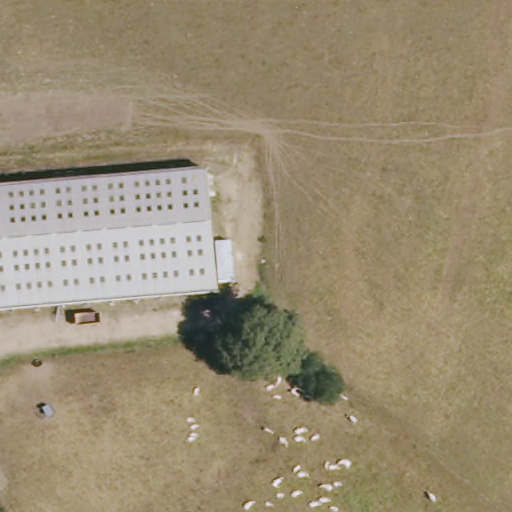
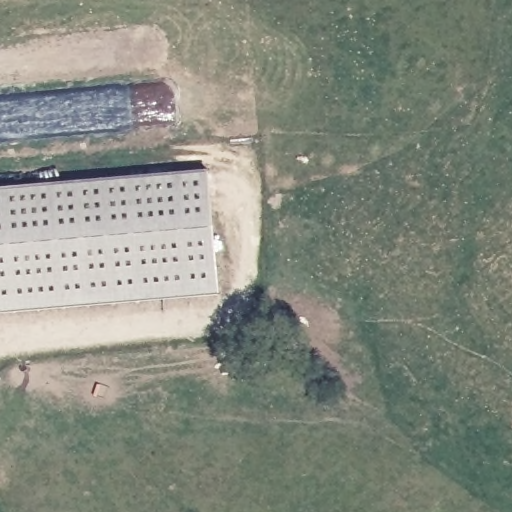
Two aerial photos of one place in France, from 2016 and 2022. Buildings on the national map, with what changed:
unchanged [(209,172),(219,297),(0,315),(0,191),(209,172)]

